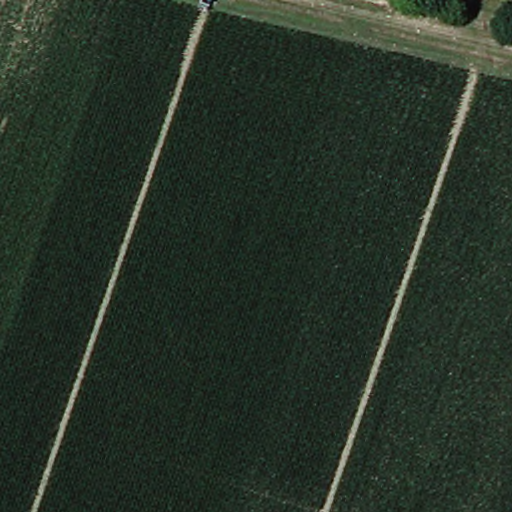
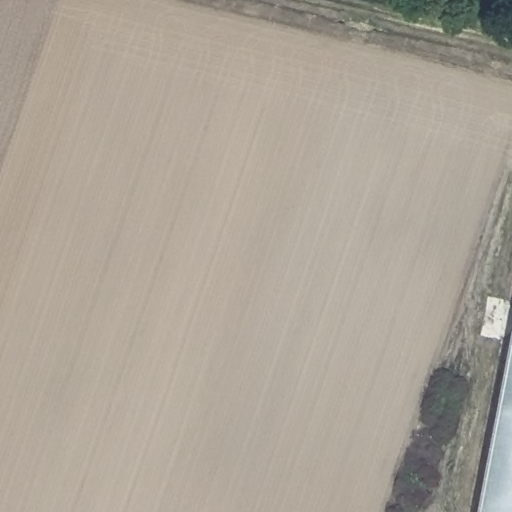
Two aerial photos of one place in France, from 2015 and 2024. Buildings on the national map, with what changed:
new [(512,330),(512,512),(478,512),(512,330)]

